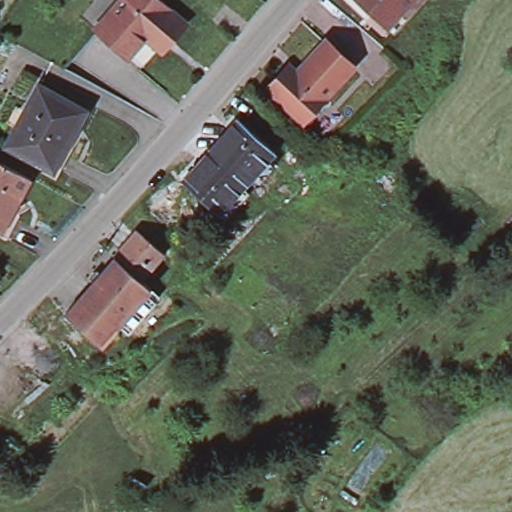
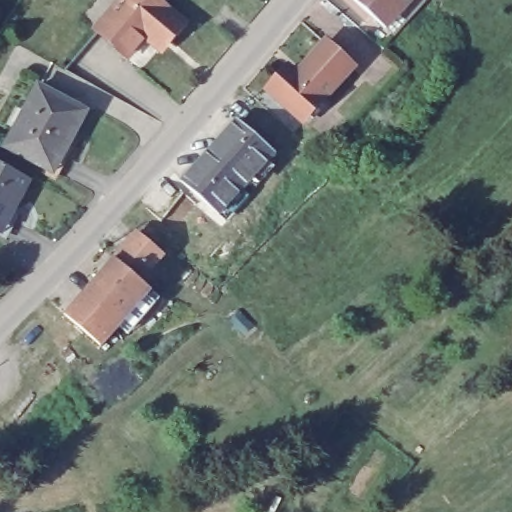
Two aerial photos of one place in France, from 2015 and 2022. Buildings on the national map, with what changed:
unchanged [(130,57),(97,31),(124,0),(157,0),(181,20),(186,25),(163,52),(159,49),(143,68),(130,57)]
unchanged [(354,0),(414,0),(387,30),(354,0)]
unchanged [(298,79),(326,47),(354,71),(305,126),(270,94),(290,72),(298,79)]
unchanged [(88,111),(55,172),(7,146),(40,85),(88,111)]
unchanged [(276,153),(220,215),(182,181),(238,119),(276,153)]
unchanged [(31,179),(2,234),(0,233),(0,162),(31,179)]
unchanged [(139,231),(165,254),(142,281),(116,257),(139,231)]
unchanged [(116,257),(142,281),(151,290),(128,316),(92,284),(116,257)]
unchanged [(102,347),(65,315),(92,284),(128,316),(102,347)]

